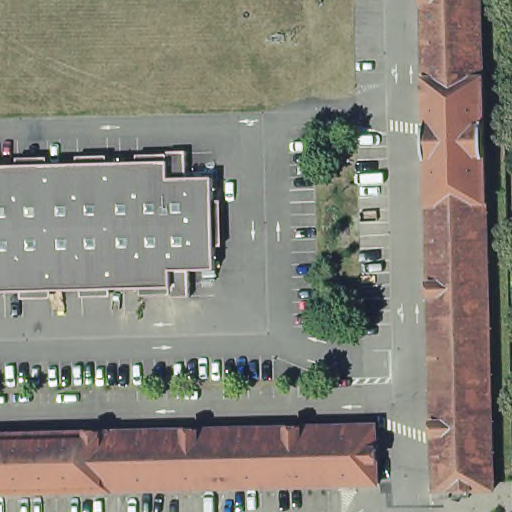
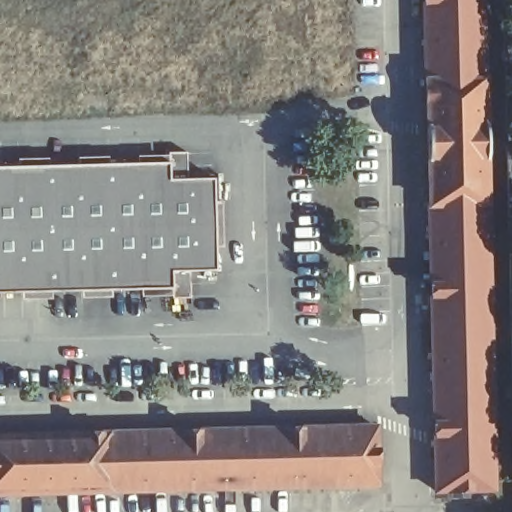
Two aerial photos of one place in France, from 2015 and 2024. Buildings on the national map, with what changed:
unchanged [(499,489),(442,491),(429,0),(486,0),(499,489)]
unchanged [(162,292),(0,297),(0,170),(36,170),(159,167),(159,157),(177,156),(177,182),(205,182),(207,275),(180,275),(180,302),(162,302),(162,292)]
unchanged [(382,421),(384,478),(39,487),(0,488),(0,430),(37,429),(382,421)]

